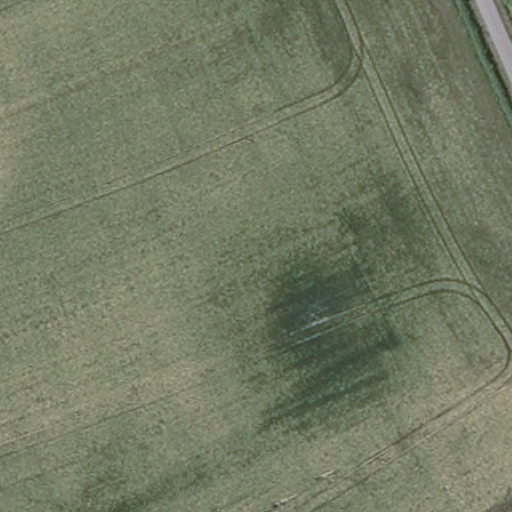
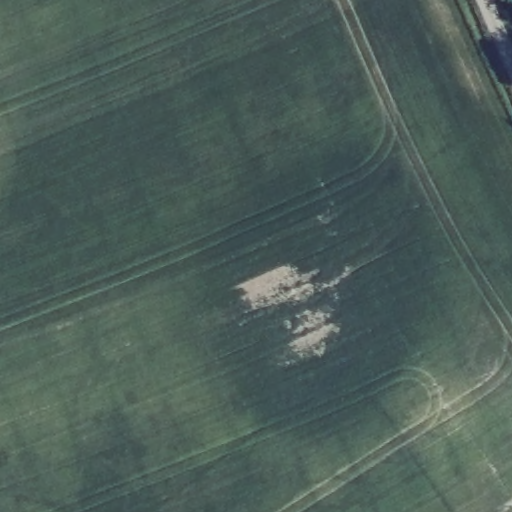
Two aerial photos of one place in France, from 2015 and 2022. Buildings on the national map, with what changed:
[]

